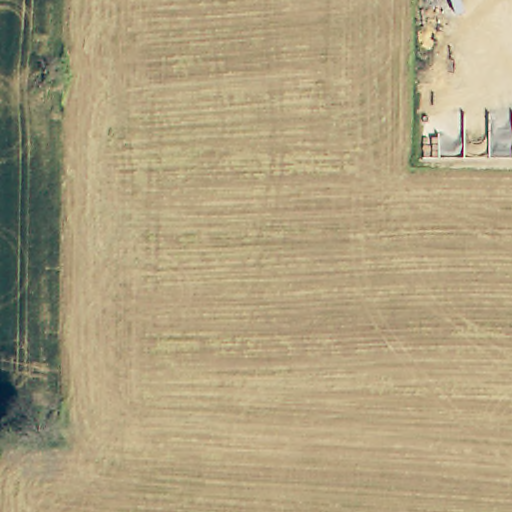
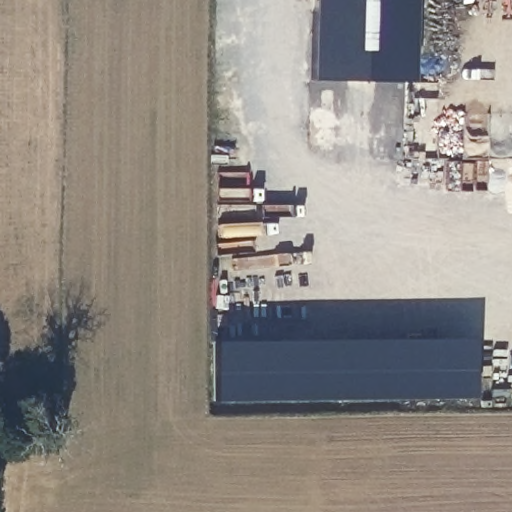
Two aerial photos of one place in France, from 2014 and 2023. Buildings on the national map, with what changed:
new [(312,77),(313,0),(413,0),(411,81),(312,77)]
new [(476,397),(217,401),(215,341),(474,336),(476,397)]

